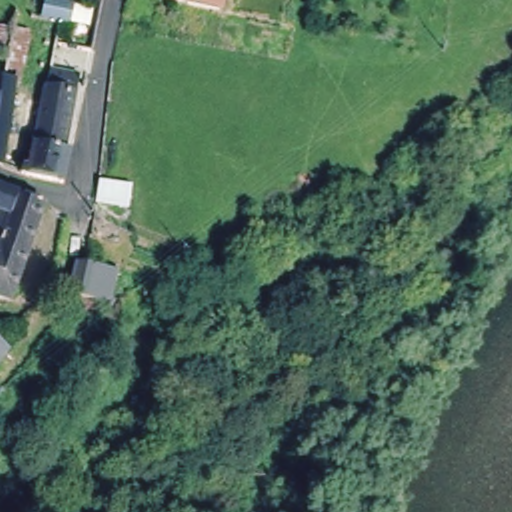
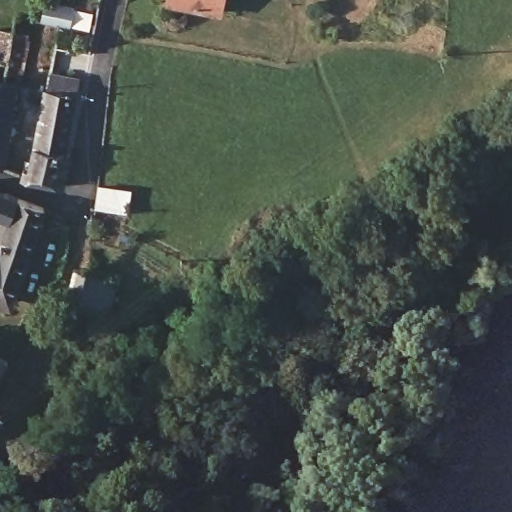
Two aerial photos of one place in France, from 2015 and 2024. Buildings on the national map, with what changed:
unchanged [(62,25),(41,20),(45,0),(55,0),(55,2),(74,6),(70,26),(62,25)]
unchanged [(168,1),(168,0),(222,0),(220,11),(168,1)]
unchanged [(26,29),(22,58),(17,80),(14,79),(9,120),(1,164),(0,164),(0,25),(26,29)]
unchanged [(25,120),(27,105),(41,109),(44,94),(47,95),(51,77),(77,83),(63,156),(32,150),(35,138),(22,135),(25,120)]
unchanged [(61,167),(63,158),(70,159),(69,160),(67,169),(61,167)]
unchanged [(94,191),(125,195),(123,215),(92,212),(94,191)]
unchanged [(0,237),(0,192),(14,197),(0,237)]
unchanged [(7,301),(0,299),(0,237),(14,197),(40,207),(7,301)]
unchanged [(244,245),(236,241),(244,223),(252,226),(244,245)]
unchanged [(74,267),(96,270),(117,275),(106,321),(77,314),(79,303),(66,300),(74,267)]
unchanged [(0,360),(0,354),(3,356),(0,360)]

